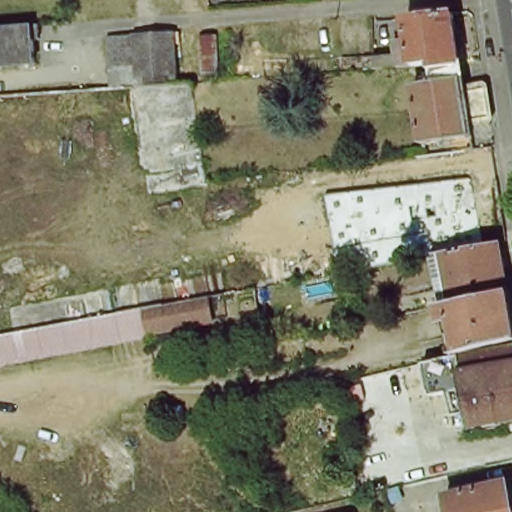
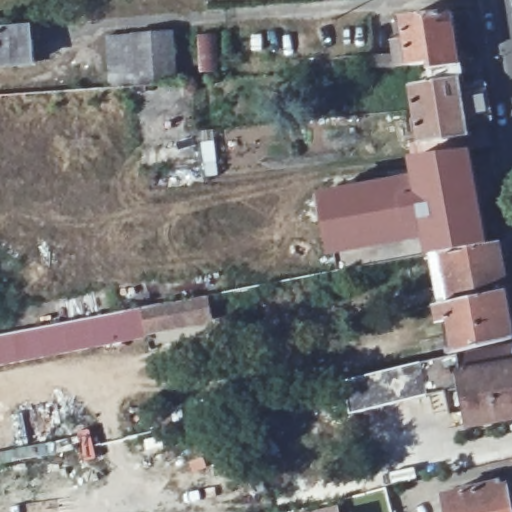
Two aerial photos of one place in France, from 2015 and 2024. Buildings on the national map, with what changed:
unchanged [(400,42),(415,40),(412,18),(459,13),(462,30),(466,29),(469,51),(465,51),(467,61),(468,64),(439,69),(438,63),(382,68),(380,68),(380,56),(402,53),(400,42)]
unchanged [(39,24),(40,39),(34,40),(36,63),(0,66),(0,27),(32,25),(39,24)]
unchanged [(108,88),(104,36),(169,32),(173,83),(128,87),(108,88)]
unchanged [(219,34),(222,72),(202,74),(199,36),(219,34)]
unchanged [(496,116),(476,119),(479,137),(428,144),(419,84),(432,81),(431,72),(439,71),(439,69),(468,64),(472,95),(492,92),(496,116)]
new [(440,254),(434,255),(430,236),(333,255),(332,247),(322,195),(419,179),(416,158),(468,153),(484,247),(440,254)]
unchanged [(440,254),(506,243),(512,276),(512,291),(452,304),(447,305),(438,255),(440,254)]
unchanged [(447,305),(452,304),(512,291),(512,341),(467,353),(460,320),(450,322),(447,305)]
unchanged [(147,310),(214,298),(218,320),(152,333),(147,310)]
unchanged [(147,310),(152,333),(153,336),(0,365),(0,337),(126,314),(147,310)]
unchanged [(452,356),(467,353),(512,346),(512,420),(477,426),(471,389),(436,395),(430,362),(452,356)]
unchanged [(469,491),(467,484),(478,481),(479,488),(509,481),(512,494),(512,512),(450,512),(447,496),(469,491)]

